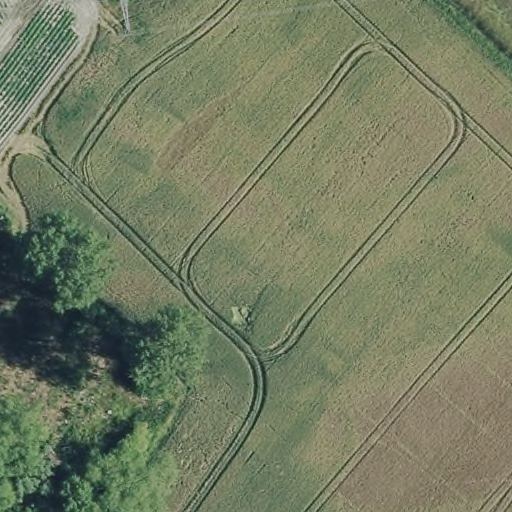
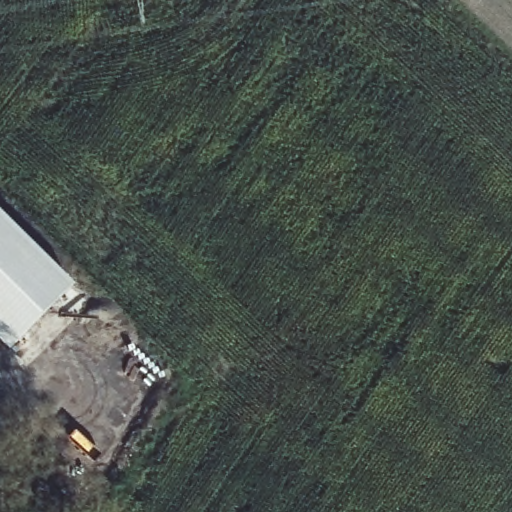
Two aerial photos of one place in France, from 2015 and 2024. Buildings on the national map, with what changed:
new [(72,287),(7,353),(0,346),(0,215),(72,287)]

